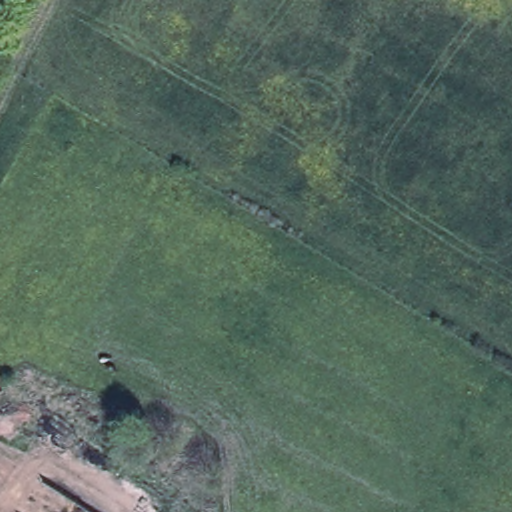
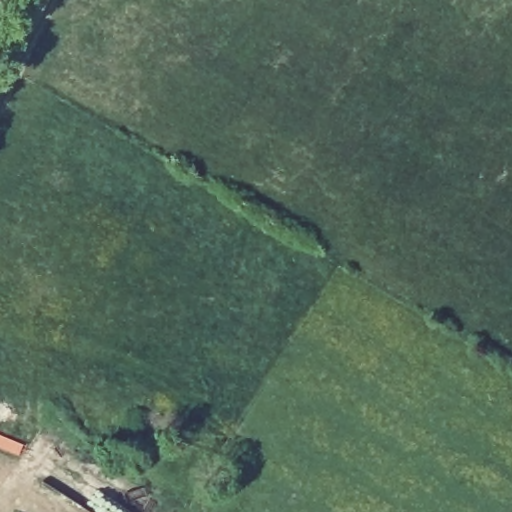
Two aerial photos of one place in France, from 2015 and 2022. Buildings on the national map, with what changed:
[]

